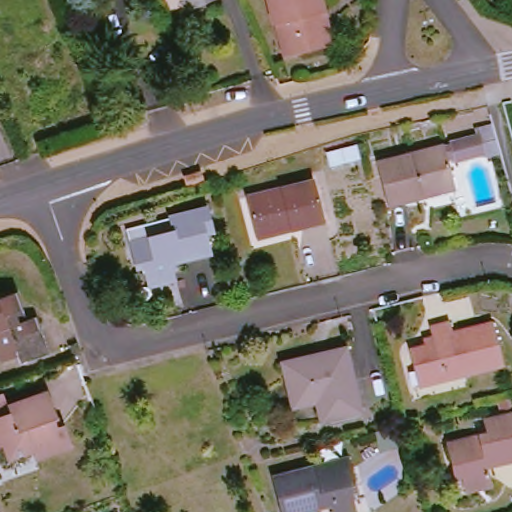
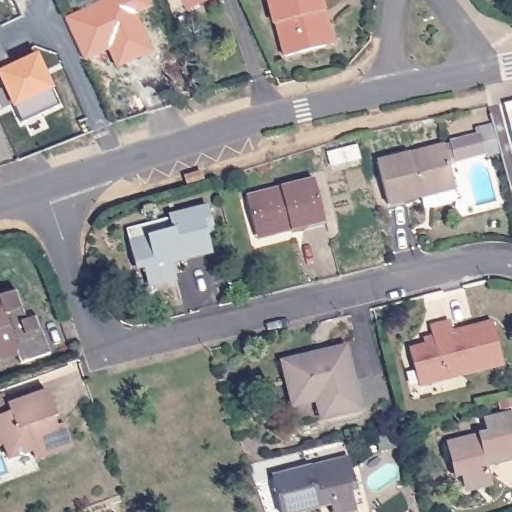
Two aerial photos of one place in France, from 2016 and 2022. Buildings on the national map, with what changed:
new [(154,6),(142,14),(154,52),(118,72),(109,54),(87,65),(63,14),(95,0),(150,0),(154,6)]
unchanged [(185,9),(181,0),(206,0),(185,9)]
unchanged [(331,50),(291,61),(282,29),(280,30),(271,0),(325,0),(329,16),(338,49),(331,50)]
new [(12,69),(36,58),(59,109),(21,126),(0,79),(0,44),(1,43),(12,69)]
unchanged [(485,151),(455,158),(451,143),(481,136),(485,151)]
unchanged [(421,198),(388,206),(377,163),(444,146),(453,182),(455,189),(421,198)]
unchanged [(255,233),(246,197),(314,180),(325,222),(291,230),(257,239),(255,233)]
unchanged [(218,230),(211,232),(216,252),(176,262),(181,279),(154,286),(147,261),(140,263),(135,243),(177,232),(175,219),(213,209),(218,230)]
unchanged [(14,289),(21,305),(27,303),(31,315),(41,311),(56,348),(26,360),(22,350),(5,357),(2,348),(0,349),(0,289),(2,294),(14,289)]
unchanged [(450,328),(452,338),(492,328),(503,370),(425,390),(421,374),(415,376),(409,356),(425,352),(423,346),(432,343),(430,333),(450,328)]
unchanged [(326,422),(324,414),(321,402),(297,407),(287,363),(350,348),(362,398),(365,412),(326,422)]
unchanged [(54,420),(57,428),(64,425),(72,447),(36,460),(32,452),(9,460),(4,446),(0,448),(0,398),(4,396),(7,407),(47,392),(57,419),(54,420)]
unchanged [(492,434),(489,420),(512,415),(512,460),(492,465),(496,481),(469,488),(464,463),(457,465),(452,443),(492,434)]
unchanged [(361,484),(355,486),(361,507),(344,512),(338,512),(335,500),(325,503),(326,505),(302,512),(286,512),(277,479),(354,459),(361,484)]

